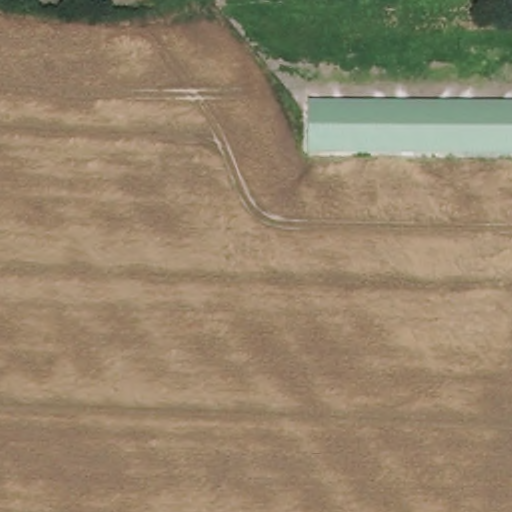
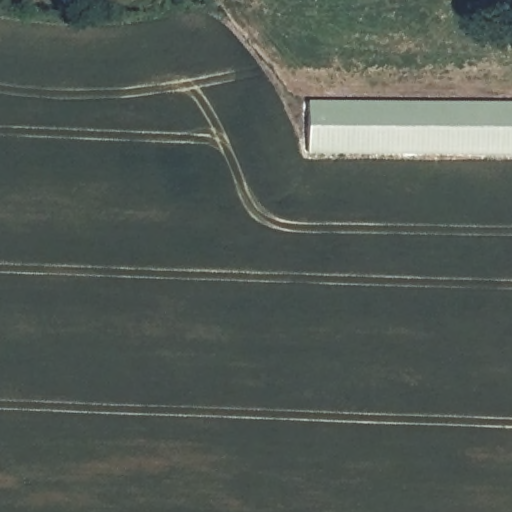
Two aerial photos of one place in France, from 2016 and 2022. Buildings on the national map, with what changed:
unchanged [(307,102),(512,104),(512,154),(307,153),(307,102)]

